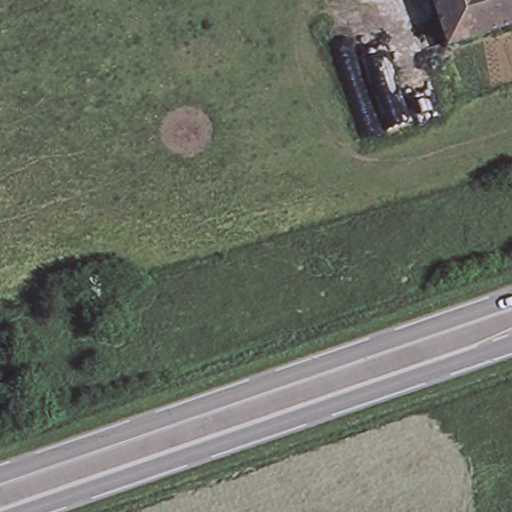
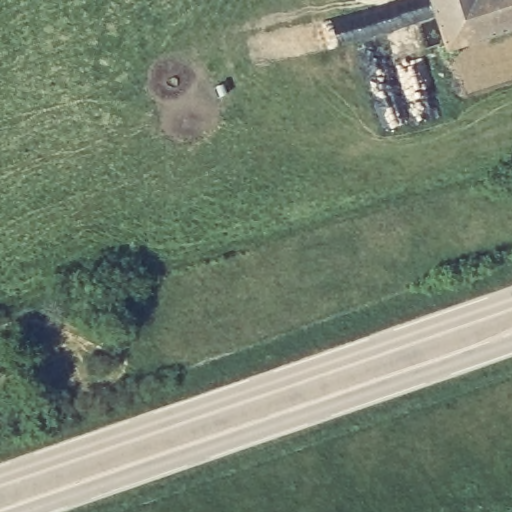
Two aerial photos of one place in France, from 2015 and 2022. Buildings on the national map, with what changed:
unchanged [(437,0),(512,0),(512,21),(450,41),(437,0)]

